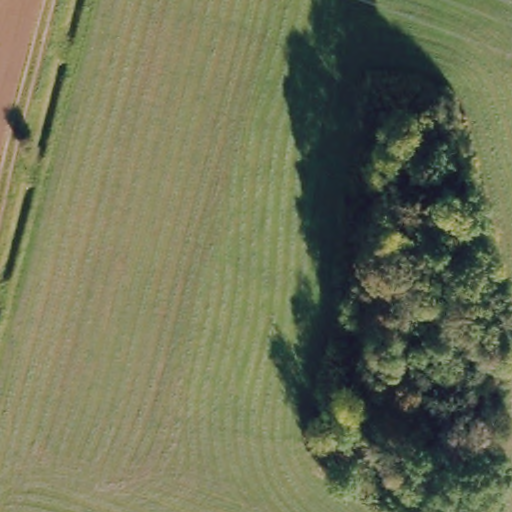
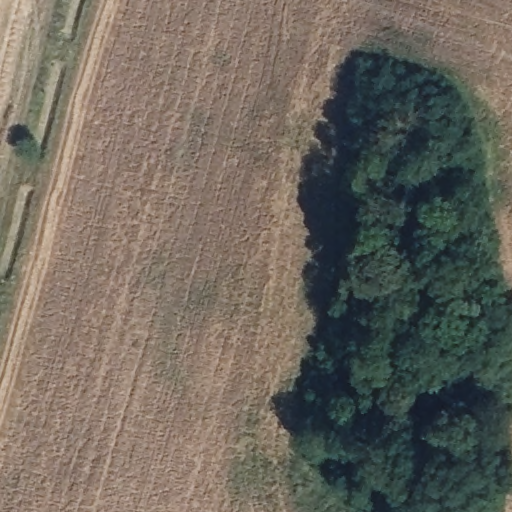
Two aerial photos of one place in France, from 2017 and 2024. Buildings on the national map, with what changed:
unchanged [(362,435),(370,467),(337,470),(333,436),(362,435)]

